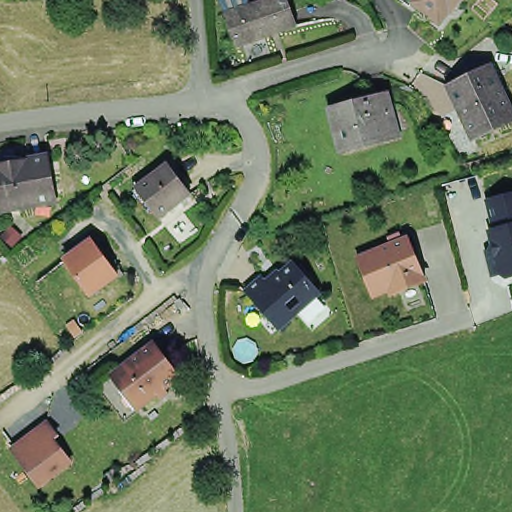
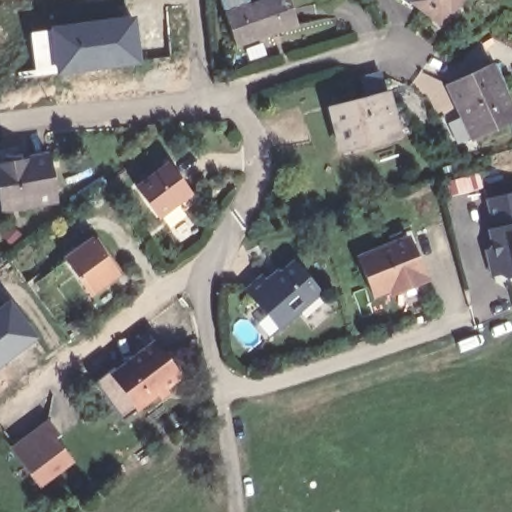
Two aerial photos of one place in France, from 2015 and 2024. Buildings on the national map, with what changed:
unchanged [(230,5),(228,0),(298,0),(304,17),(243,37),(230,5)]
unchanged [(454,5),(443,19),(416,0),(465,0),(459,10),(454,5)]
new [(136,19),(142,65),(58,78),(56,65),(50,66),(47,29),(136,19)]
unchanged [(512,121),(469,137),(449,87),(492,69),(512,120),(512,121)]
unchanged [(394,127),(341,142),(329,102),(383,86),(394,127)]
unchanged [(6,208),(0,175),(0,160),(26,155),(45,150),(57,197),(6,208)]
unchanged [(140,197),(132,185),(166,161),(173,172),(188,194),(153,218),(140,197)]
unchanged [(503,275),(498,255),(491,251),(495,244),(492,231),(497,230),(489,200),(512,194),(512,278),(509,279),(503,275)]
unchanged [(394,241),(391,235),(402,230),(404,236),(410,234),(428,276),(394,289),(392,285),(386,287),(375,292),(359,255),(374,249),(394,241)]
unchanged [(123,276),(89,300),(57,258),(90,234),(123,276)]
unchanged [(266,272),(271,277),(283,267),(285,269),(298,258),(324,288),(284,323),(271,309),(270,310),(249,287),(266,272)]
new [(42,338),(0,372),(0,302),(8,295),(42,338)]
unchanged [(139,408),(111,370),(118,364),(153,332),(183,371),(144,403),(139,408)]
unchanged [(43,422),(53,435),(49,438),(67,461),(38,483),(11,447),(43,422)]

